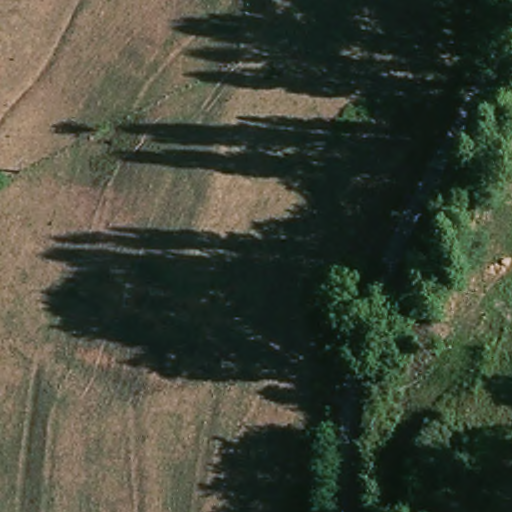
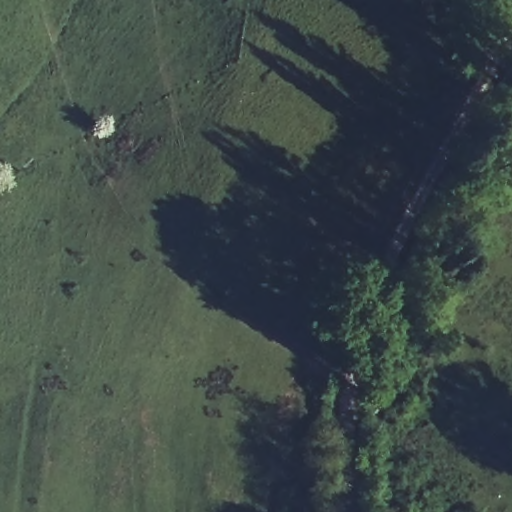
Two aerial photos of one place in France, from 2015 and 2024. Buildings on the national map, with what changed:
[]

